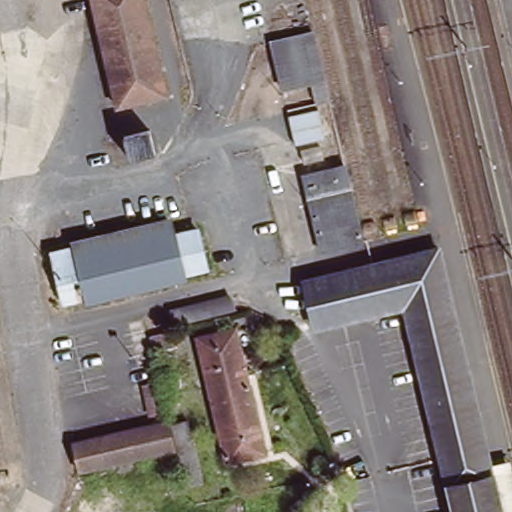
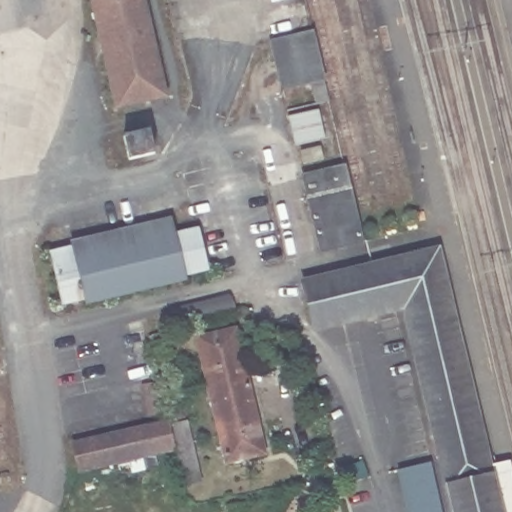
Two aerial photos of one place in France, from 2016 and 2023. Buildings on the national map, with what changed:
unchanged [(113,117),(90,0),(151,0),(172,101),(113,117)]
unchanged [(271,35),(314,25),(329,107),(314,112),(311,87),(281,95),(271,35)]
unchanged [(301,174),(348,163),(366,242),(322,253),(301,174)]
unchanged [(49,247),(173,216),(176,231),(203,223),(213,277),(59,316),(49,247)]
unchanged [(443,245),(492,466),(509,463),(512,473),(512,512),(451,512),(399,313),(310,341),(301,278),(443,245)]
unchanged [(266,446),(231,453),(203,334),(238,326),(266,446)]
unchanged [(179,452),(78,475),(70,441),(172,418),(173,428),(180,452),(179,452)]
unchanged [(188,487),(173,428),(189,425),(204,482),(188,487)]

